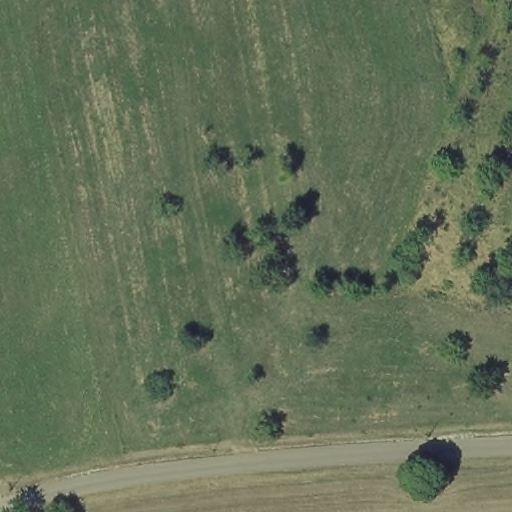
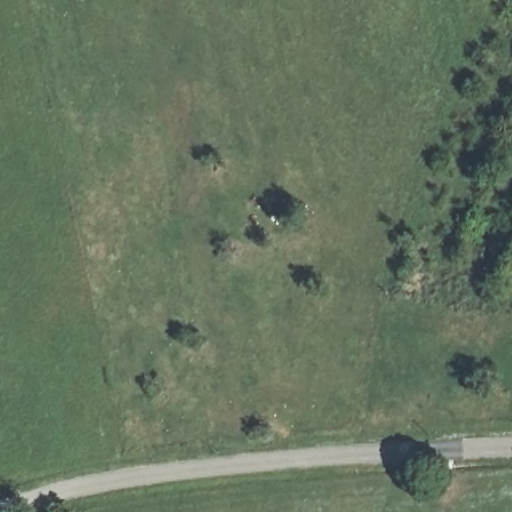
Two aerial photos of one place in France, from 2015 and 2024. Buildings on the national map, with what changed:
[]

